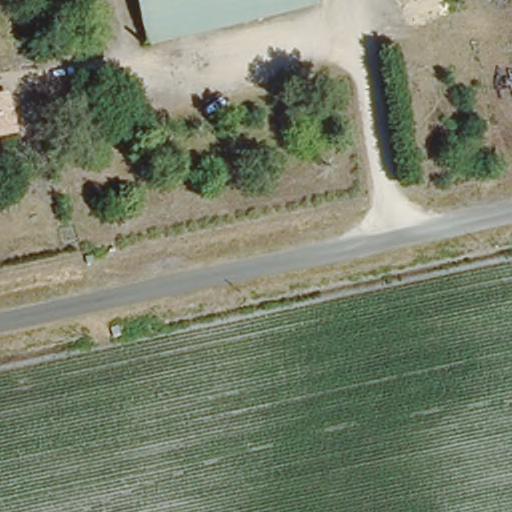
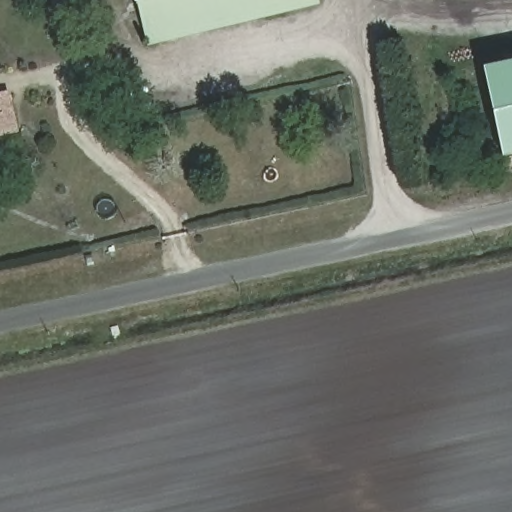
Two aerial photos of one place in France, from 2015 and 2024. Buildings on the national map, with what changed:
unchanged [(149,45),(130,0),(318,0),(319,3),(149,45)]
new [(503,156),(485,68),(512,62),(512,155),(503,156)]
unchanged [(0,142),(0,94),(11,91),(21,138),(0,142)]

